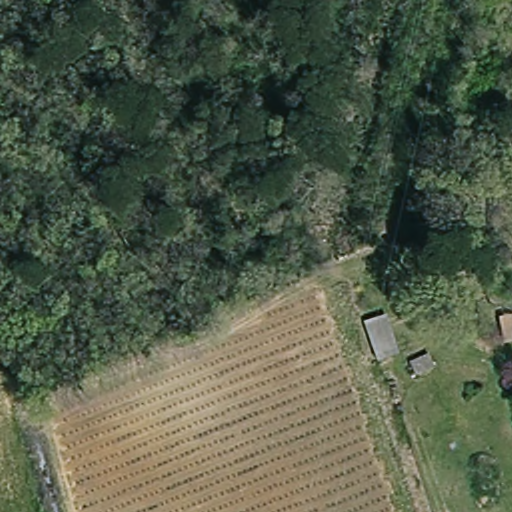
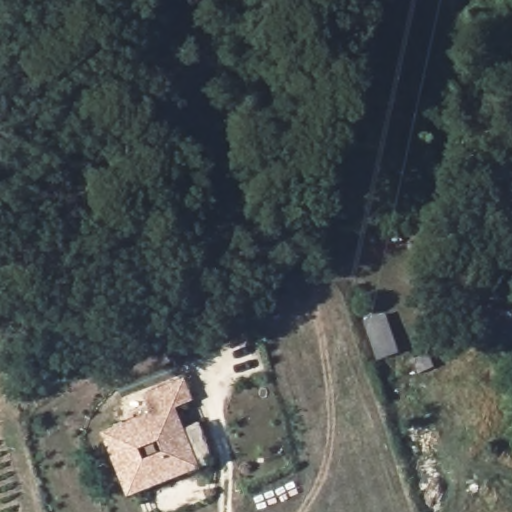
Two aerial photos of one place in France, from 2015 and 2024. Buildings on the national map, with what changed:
unchanged [(361,321),(389,312),(400,354),(376,363),(361,321)]
unchanged [(506,348),(495,323),(512,316),(512,346),(506,348)]
new [(201,467),(129,496),(101,432),(148,412),(141,395),(183,378),(193,398),(175,405),(201,467)]

